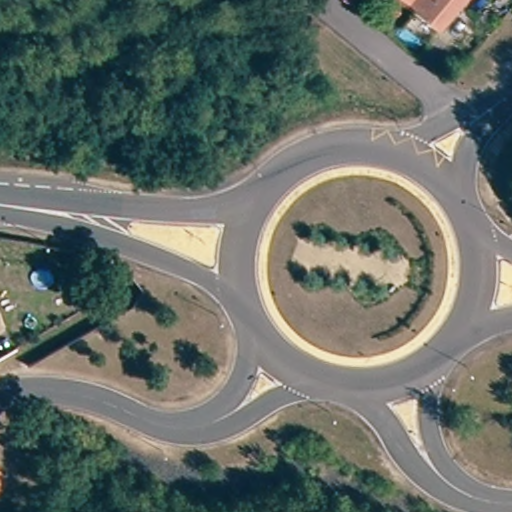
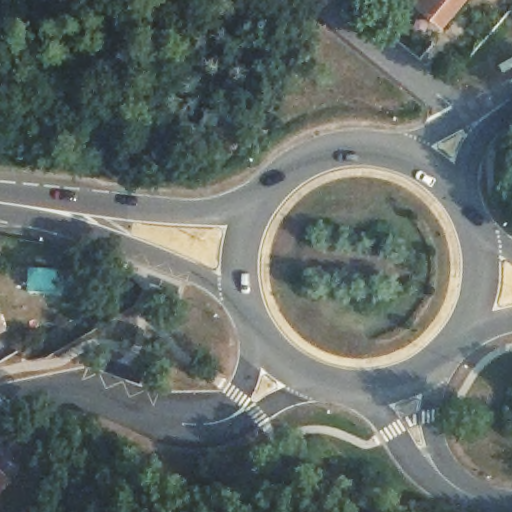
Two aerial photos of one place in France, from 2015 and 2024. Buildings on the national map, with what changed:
unchanged [(424,0),(464,0),(447,19),(424,0)]
unchanged [(12,328),(0,332),(0,289),(12,328)]
unchanged [(11,481),(0,493),(0,469),(11,481)]

